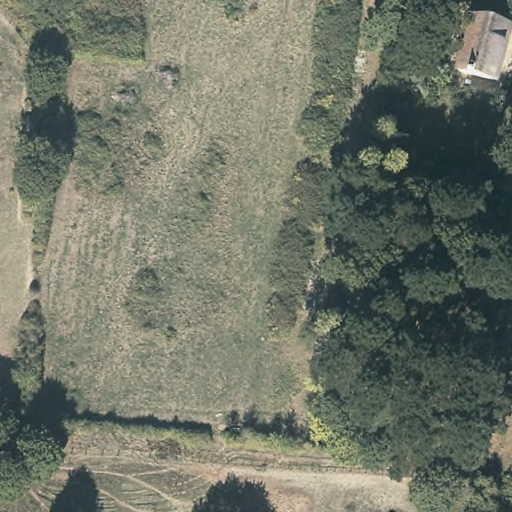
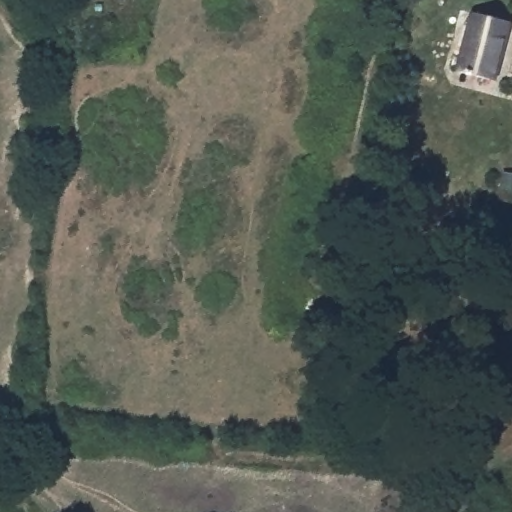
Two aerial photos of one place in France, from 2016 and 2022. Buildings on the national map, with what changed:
unchanged [(512,16),(512,23),(500,75),(462,65),(475,7),(512,16)]

